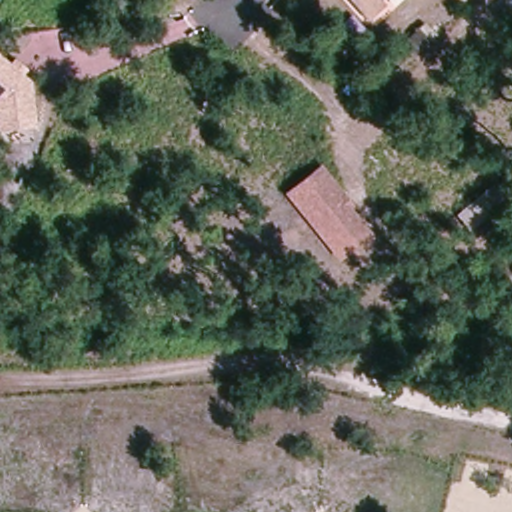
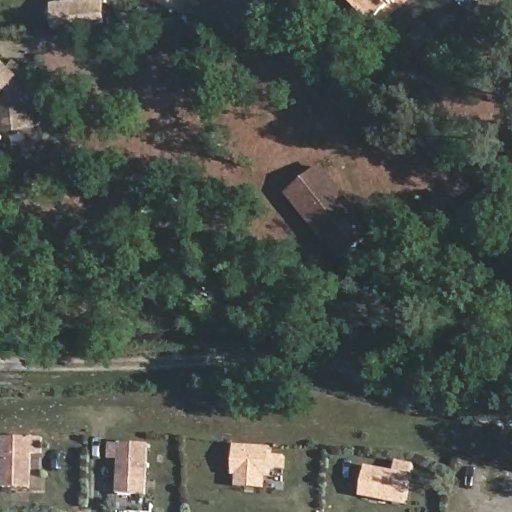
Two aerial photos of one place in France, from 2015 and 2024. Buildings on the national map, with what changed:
new [(57,29),(54,2),(79,0),(104,0),(106,24),(57,29)]
unchanged [(384,7),(366,24),(345,0),(379,0),(378,1),(384,7)]
unchanged [(34,82),(36,127),(0,131),(0,55),(34,82)]
unchanged [(342,259),(290,195),(324,167),(347,196),(355,205),(350,209),(372,235),(342,259)]
unchanged [(470,229),(458,214),(488,191),(500,206),(470,229)]
new [(32,453),(31,487),(1,487),(3,436),(44,437),(42,453),(32,453)]
new [(109,459),(109,441),(150,443),(148,494),(117,493),(119,458),(109,459)]
new [(285,469),(270,469),(270,476),(266,476),(266,486),(235,485),(236,474),(234,474),(235,444),(271,446),(270,454),(286,454),(285,469)]
new [(395,459),(414,463),(406,504),(360,495),(366,465),(394,470),(395,459)]

